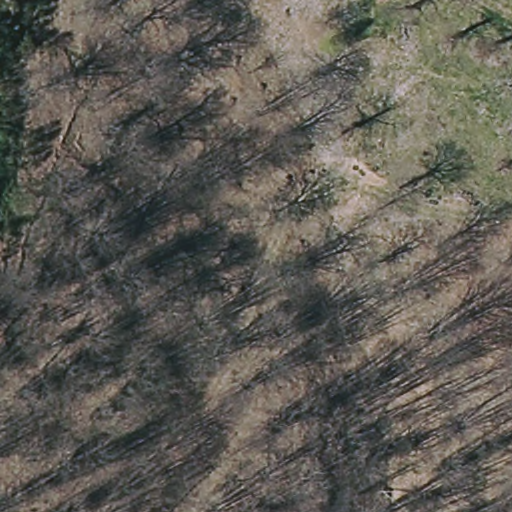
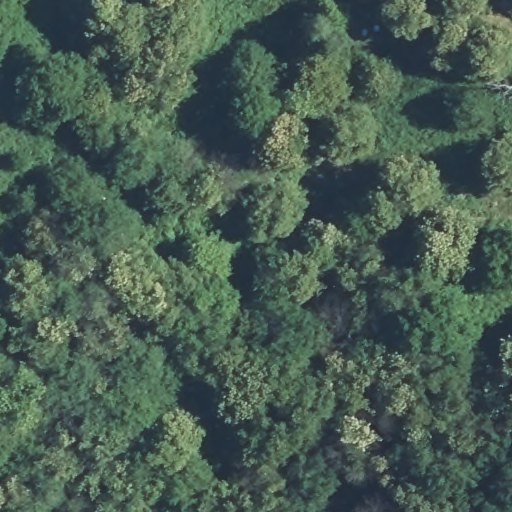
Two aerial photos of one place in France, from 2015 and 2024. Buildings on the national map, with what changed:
[]

